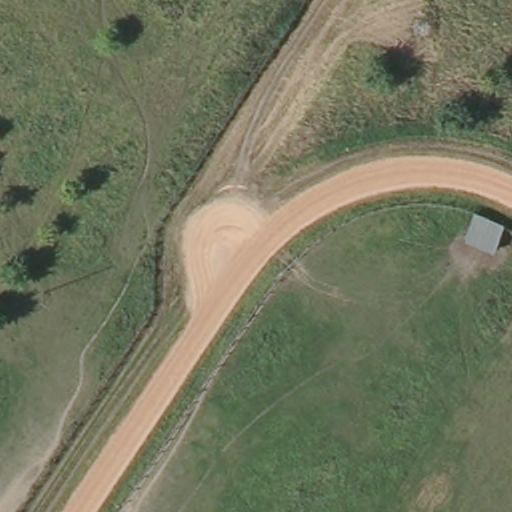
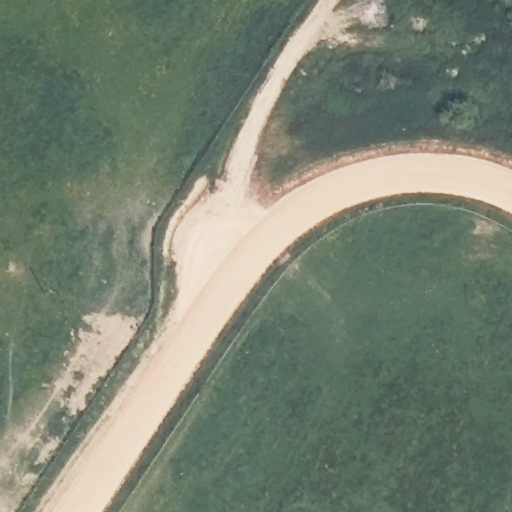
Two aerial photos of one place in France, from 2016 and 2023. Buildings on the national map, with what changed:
demolished [(475,212),(505,225),(496,251),(463,240),(475,212)]

